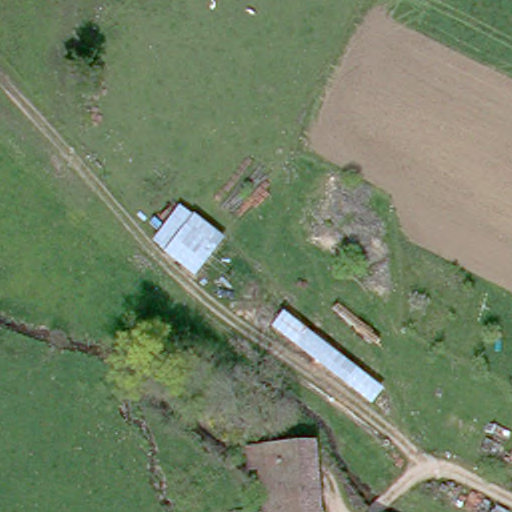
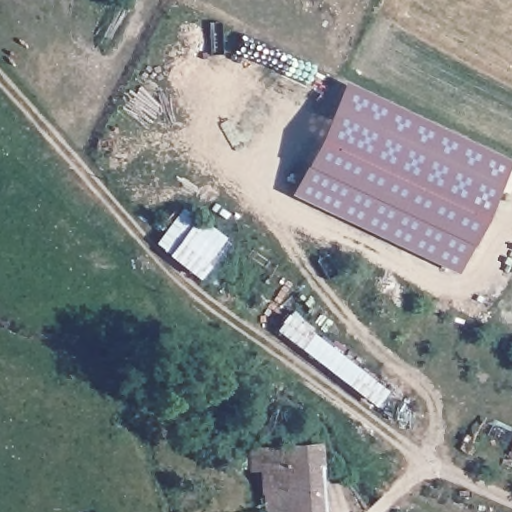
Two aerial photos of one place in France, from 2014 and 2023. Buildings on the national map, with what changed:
new [(512,164),(512,182),(508,191),(495,185),(456,271),(290,191),(341,82),(512,164)]
new [(179,206),(225,238),(197,280),(152,242),(179,206)]
unchanged [(257,490),(255,442),(311,441),(313,512),(258,512),(257,491),(257,490)]

